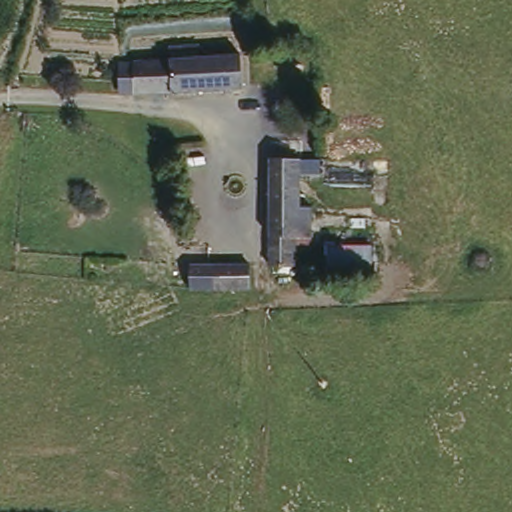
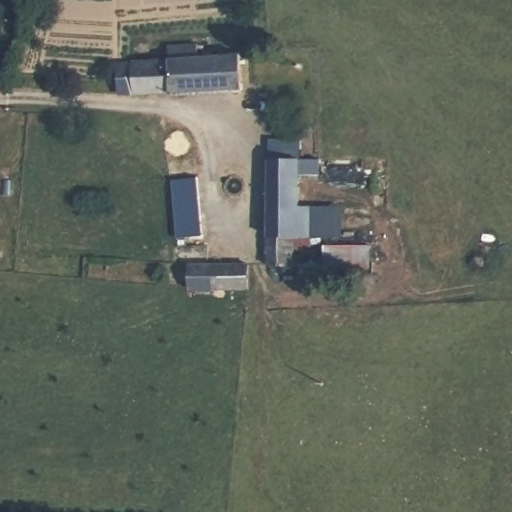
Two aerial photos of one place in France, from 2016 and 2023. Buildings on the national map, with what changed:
unchanged [(132,61),(166,59),(167,46),(197,44),(196,58),(237,56),(239,89),(134,91),(132,61)]
unchanged [(296,213),(306,210),(305,251),(292,251),(288,258),(287,270),(277,269),(261,266),(266,161),(296,161),(296,213)]
new [(173,181),(198,179),(203,236),(178,239),(173,181)]
unchanged [(245,261),(244,284),(187,284),(187,259),(245,261)]

